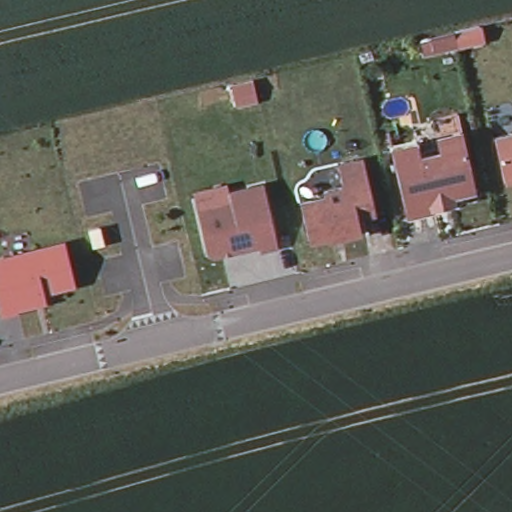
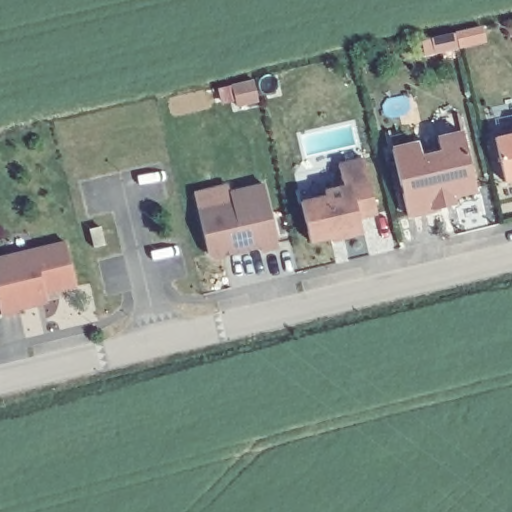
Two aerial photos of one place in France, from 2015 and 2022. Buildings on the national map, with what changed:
unchanged [(422,45),(432,43),(456,36),(459,48),(459,51),(453,53),(435,57),(426,60),(422,45)]
unchanged [(492,141),(512,137),(512,184),(502,187),(492,141)]
unchanged [(438,213),(408,220),(393,154),(419,148),(422,161),(442,156),(439,144),(464,138),(477,194),(452,200),(454,209),(438,213)]
unchanged [(332,236),(311,241),(302,202),(327,196),(326,191),(345,186),(340,165),(365,159),(377,213),(360,217),(363,232),(345,236),(332,239),(332,236)]
unchanged [(210,256),(204,252),(194,210),(229,202),(226,192),(261,184),(275,246),(258,250),(257,245),(230,251),(220,254),(210,256)]
unchanged [(101,232),(106,251),(95,253),(91,235),(101,232)]
unchanged [(38,305),(20,309),(20,311),(3,315),(0,305),(0,259),(6,258),(67,243),(78,285),(46,293),(48,302),(38,305)]

